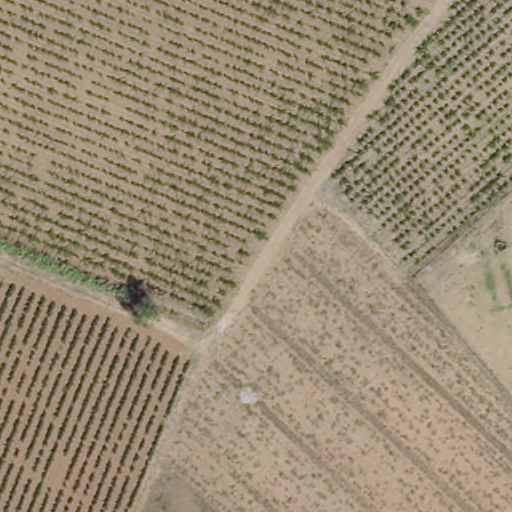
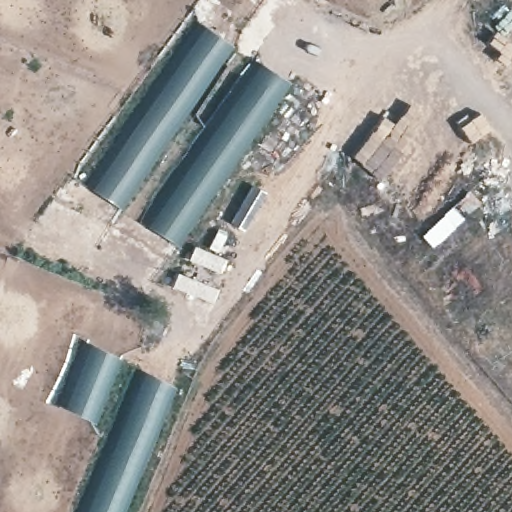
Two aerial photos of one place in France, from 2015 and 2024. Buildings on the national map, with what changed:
new [(233,45),(120,208),(87,185),(198,21),(233,45)]
new [(288,82),(177,244),(147,224),(258,61),(288,82)]
new [(120,358),(93,422),(60,406),(87,340),(120,358)]
new [(123,512),(82,512),(137,366),(174,386),(123,512)]

